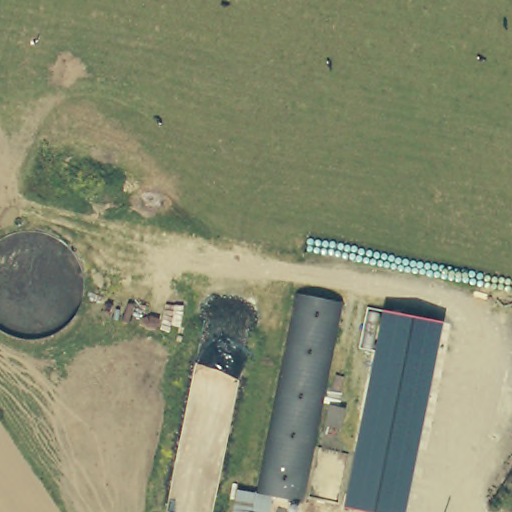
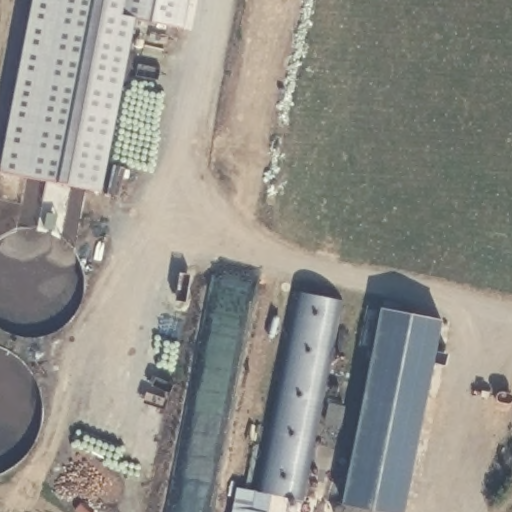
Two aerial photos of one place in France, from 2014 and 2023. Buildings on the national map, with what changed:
new [(134,19),(100,192),(0,172),(0,169),(33,0),(189,0),(183,29),(134,19)]
unchanged [(345,304),(309,470),(262,460),(299,294),(345,304)]
unchanged [(358,479),(390,315),(434,323),(401,488),(358,479)]
unchanged [(346,410),(343,427),(327,425),(331,407),(346,410)]
unchanged [(302,502),(272,496),(269,512),(254,512),(251,512),(255,491),(262,460),(309,470),(302,502)]
unchanged [(358,479),(401,488),(397,512),(351,512),(358,479)]
unchanged [(240,488),(255,491),(251,512),(254,512),(235,512),(240,488)]

